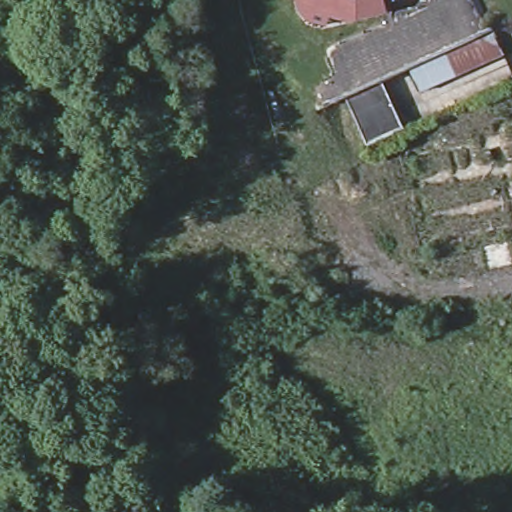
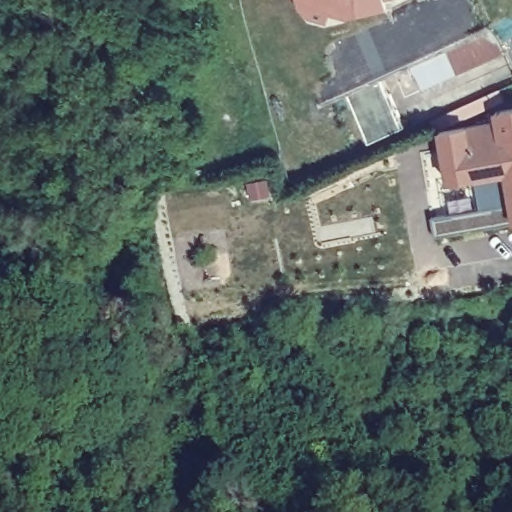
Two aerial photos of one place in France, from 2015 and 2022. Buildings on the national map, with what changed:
unchanged [(386,8),(354,16),(330,11),(327,21),(309,17),(298,5),(297,0),(385,0),(386,8)]
unchanged [(506,55),(423,92),(409,59),(489,23),(506,55)]
unchanged [(346,96),(382,79),(404,127),(368,144),(346,96)]
new [(442,131),(499,121),(497,111),(512,109),(512,194),(508,172),(474,179),(451,183),(449,172),(442,131)]
new [(433,217),(512,203),(512,224),(437,237),(433,217)]

